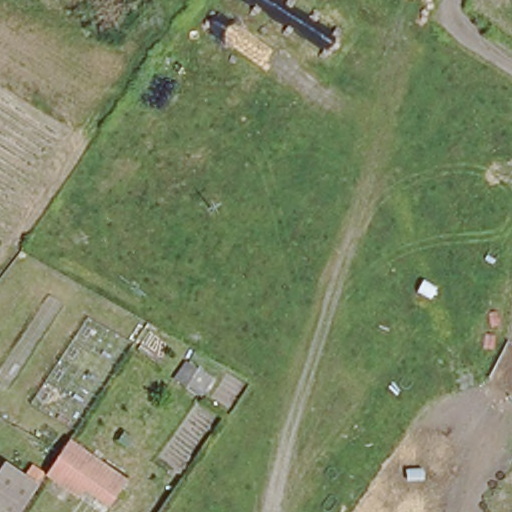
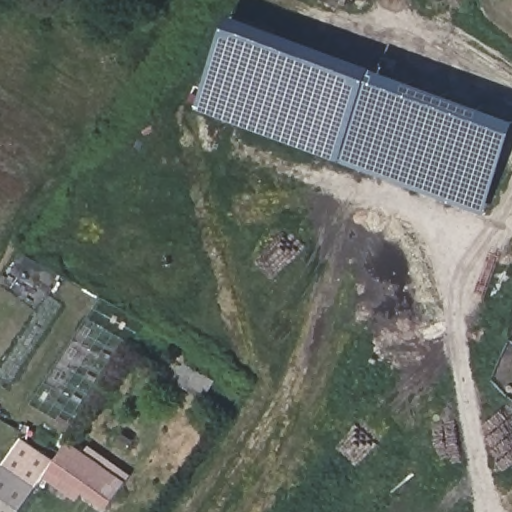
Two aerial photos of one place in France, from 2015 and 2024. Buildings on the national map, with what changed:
new [(199,108),(234,13),(512,116),(512,139),(485,214),(199,108)]
unchanged [(87,459),(126,486),(109,511),(85,495),(79,502),(45,480),(67,445),(87,459)]
unchanged [(0,472),(2,470),(6,464),(30,481),(38,487),(34,492),(20,512),(0,512),(0,472)]

